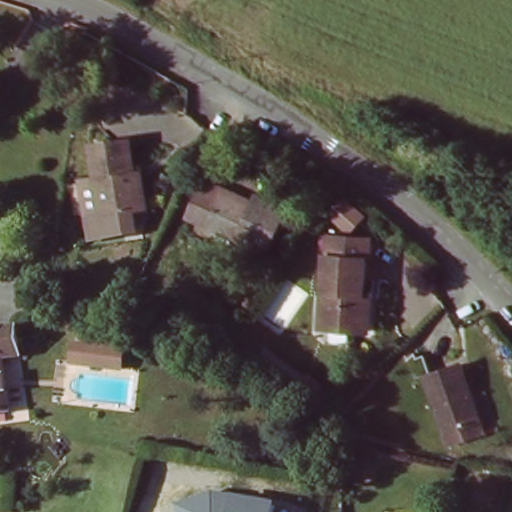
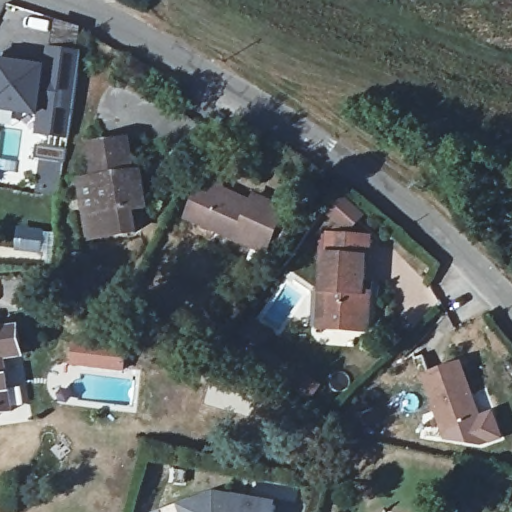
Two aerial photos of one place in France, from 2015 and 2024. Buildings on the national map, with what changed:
new [(1,52),(18,54),(17,62),(48,65),(51,46),(82,49),(72,132),(42,129),(43,111),(0,106),(0,62),(1,52)]
unchanged [(143,204),(133,206),(97,212),(87,143),(124,138),(129,171),(138,170),(143,204)]
new [(49,159),(35,158),(36,144),(66,147),(64,160),(60,194),(45,192),(49,159)]
unchanged [(198,186),(216,193),(214,199),(243,212),(248,200),(280,214),(262,256),(184,222),(198,186)]
unchanged [(145,239),(85,243),(82,219),(95,217),(142,210),(145,239)]
unchanged [(317,291),(319,253),(328,254),(329,233),(370,236),(369,258),(359,259),(358,294),(364,294),(362,332),(323,328),(315,328),(317,291)]
unchanged [(10,323),(15,355),(0,358),(0,325),(10,323)]
unchanged [(76,366),(79,343),(135,348),(132,371),(76,366)]
unchanged [(7,410),(0,411),(0,367),(7,410)]
unchanged [(460,372),(482,425),(448,439),(426,386),(460,372)]
unchanged [(215,492),(277,502),(275,512),(180,512),(178,505),(215,492)]

